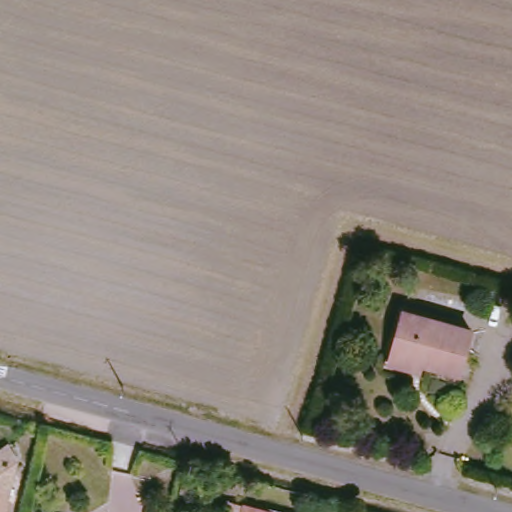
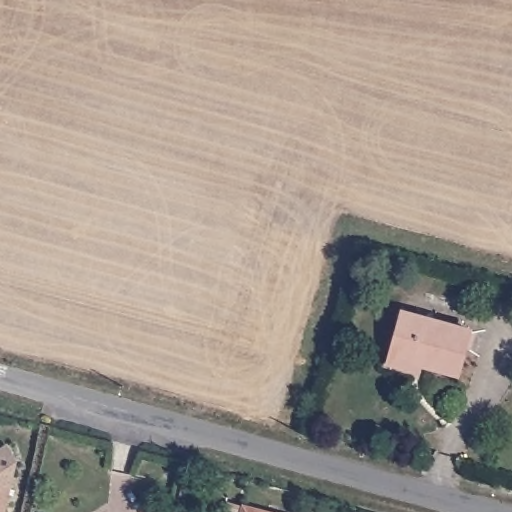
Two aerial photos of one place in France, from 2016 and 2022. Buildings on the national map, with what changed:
unchanged [(472,332),(461,375),(392,358),(405,314),(472,332)]
unchanged [(8,512),(0,512),(0,486),(13,489),(8,512)]
unchanged [(238,512),(241,505),(266,512),(238,512)]

